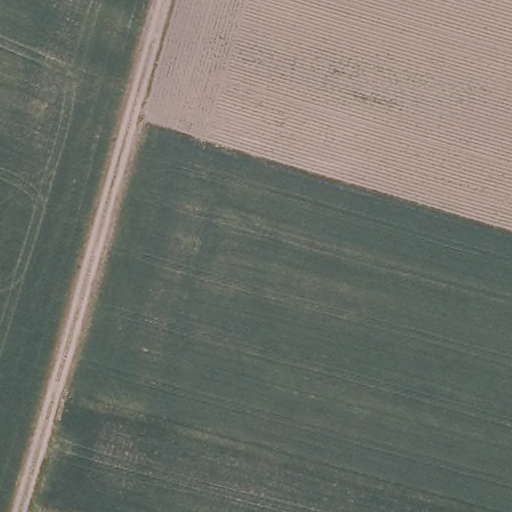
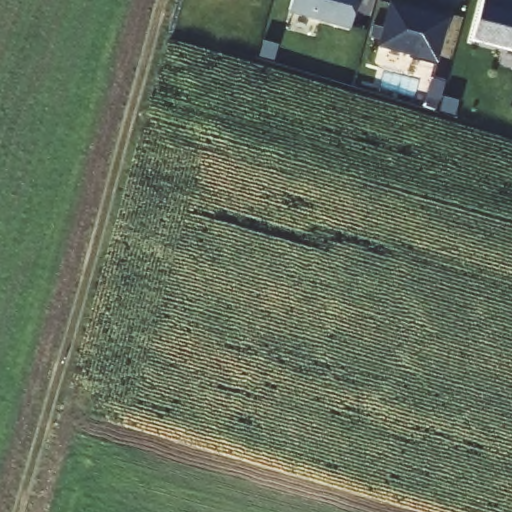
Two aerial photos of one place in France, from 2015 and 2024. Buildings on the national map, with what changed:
new [(291,11),(294,0),(359,0),(352,29),(291,11)]
new [(379,45),(390,0),(450,16),(437,60),(379,45)]
new [(475,39),(486,0),(512,0),(512,50),(475,39)]

